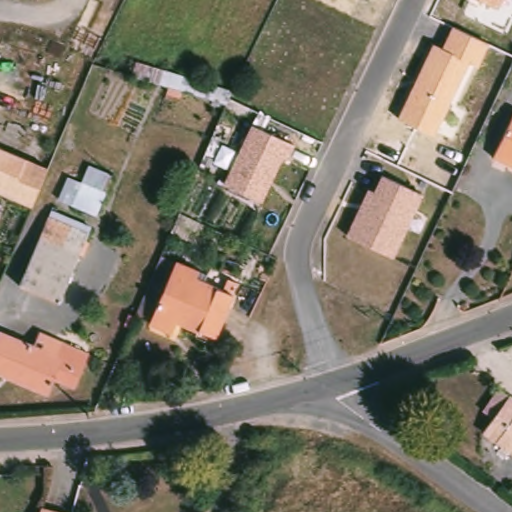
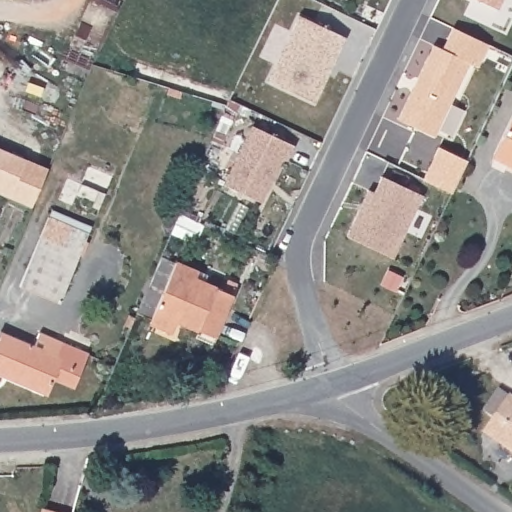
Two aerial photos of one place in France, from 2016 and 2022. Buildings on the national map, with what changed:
unchanged [(482,0),(502,0),(498,8),(482,0)]
new [(314,103),(267,80),(299,15),(346,37),(332,64),(327,74),(314,103)]
unchanged [(487,43),(477,68),(467,63),(436,136),(397,119),(432,44),(442,49),(452,27),(487,43)]
unchanged [(130,81),(132,63),(232,94),(224,111),(130,81)]
unchanged [(287,161),(281,158),(262,202),(222,184),(249,124),(294,144),(287,161)]
unchanged [(495,161),(512,126),(512,170),(495,161)]
unchanged [(47,172),(32,209),(0,195),(0,149),(48,170),(47,172)]
unchanged [(393,258),(347,237),(367,189),(372,191),(379,175),(422,194),(393,258)]
unchanged [(107,193),(97,215),(74,205),(82,183),(107,193)]
unchanged [(21,284),(51,216),(53,210),(92,227),(90,232),(61,302),(21,284)]
unchanged [(202,224),(194,242),(173,232),(181,214),(202,224)]
unchanged [(197,283),(234,299),(212,348),(196,340),(199,334),(179,325),(174,337),(152,326),(152,324),(139,317),(163,260),(177,267),(199,276),(197,283)]
unchanged [(37,336),(85,358),(71,391),(50,383),(44,399),(0,381),(0,337),(30,351),(37,336)]
unchanged [(505,395),(512,400),(512,455),(479,432),(505,395)]
unchanged [(67,466),(67,478),(54,477),(52,467),(67,466)]
unchanged [(42,503),(71,511),(71,512),(40,512),(42,503)]

